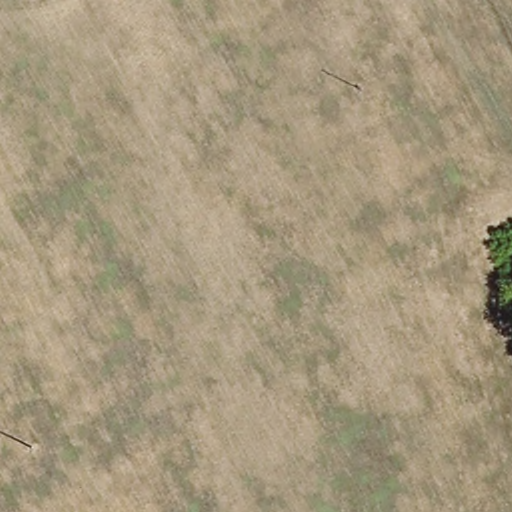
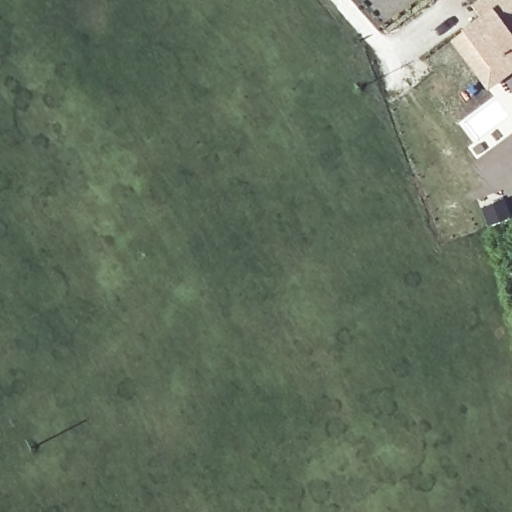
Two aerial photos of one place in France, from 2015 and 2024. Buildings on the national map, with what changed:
new [(473,6),(481,0),(512,0),(512,29),(508,32),(512,37),(512,51),(490,67),(464,31),(482,17),(473,6)]
new [(464,31),(490,67),(512,51),(512,69),(488,87),(453,40),(464,31)]

